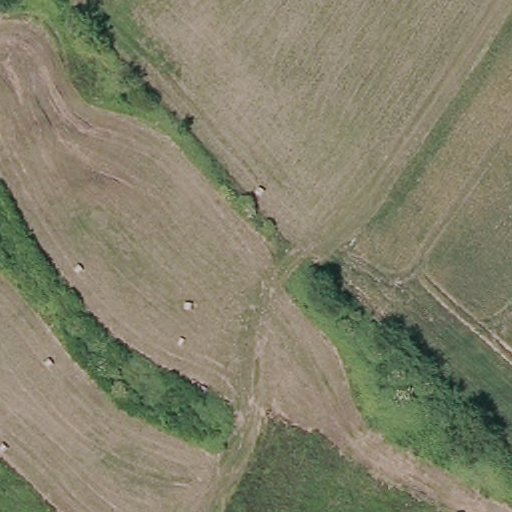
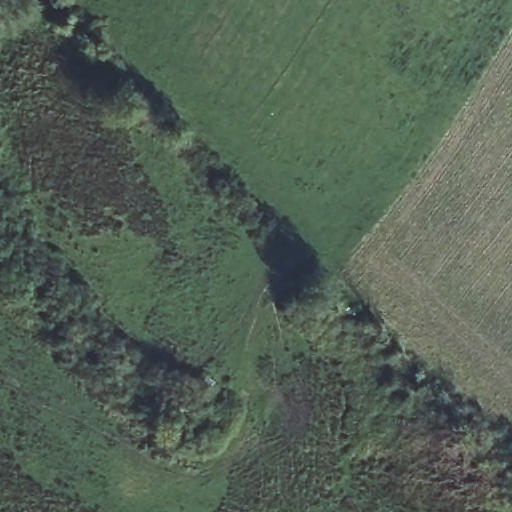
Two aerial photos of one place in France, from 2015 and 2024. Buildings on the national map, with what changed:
[]

